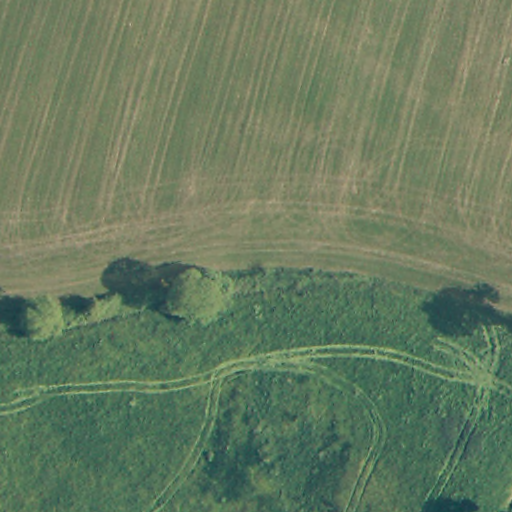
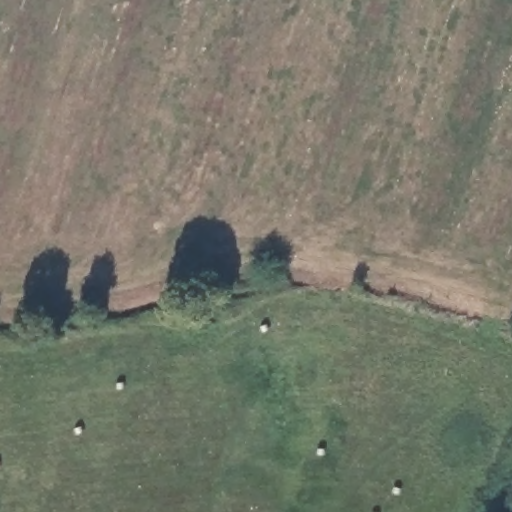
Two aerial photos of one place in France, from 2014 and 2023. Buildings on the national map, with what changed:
[]

